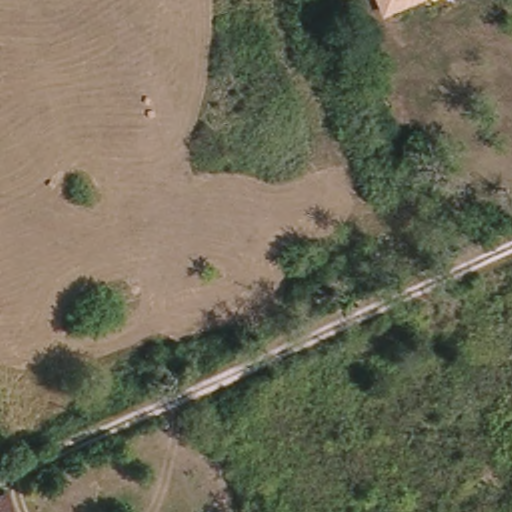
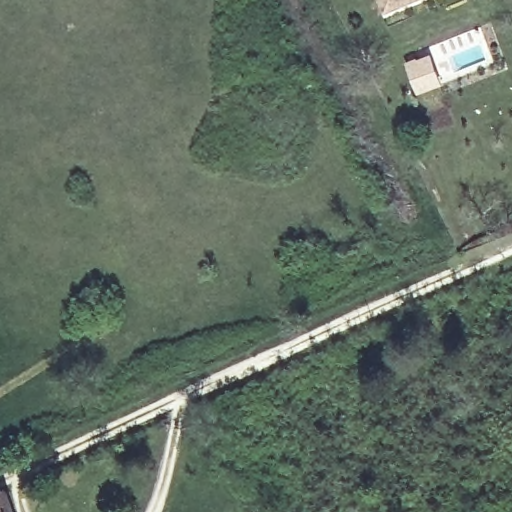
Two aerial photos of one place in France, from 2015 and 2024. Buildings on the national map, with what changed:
unchanged [(385,12),(380,0),(415,0),(385,12)]
new [(417,92),(412,79),(406,65),(427,56),(432,69),(438,82),(417,92)]
unchanged [(0,512),(0,493),(7,491),(7,490),(14,512),(0,512)]

